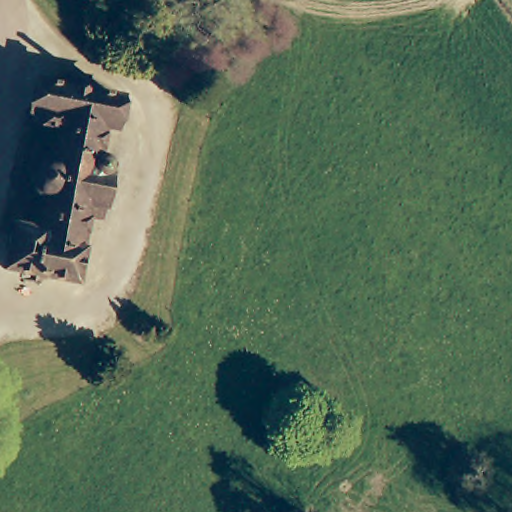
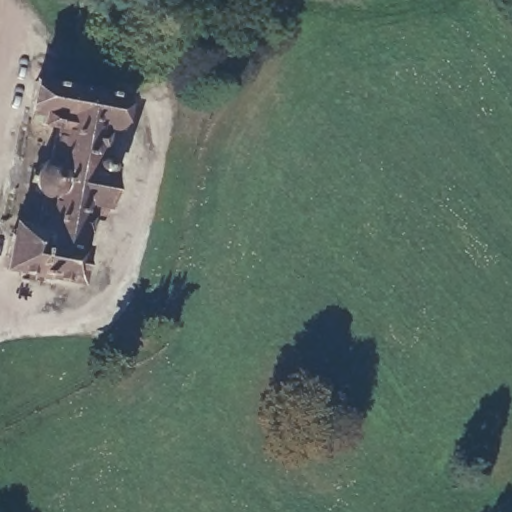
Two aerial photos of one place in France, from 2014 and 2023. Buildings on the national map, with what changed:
unchanged [(95,126),(92,159),(110,160),(103,222),(84,220),(77,283),(5,275),(9,235),(21,236),(36,237),(39,203),(28,192),(30,168),(46,154),(49,121),(25,119),(29,77),(109,86),(105,127),(95,126)]

